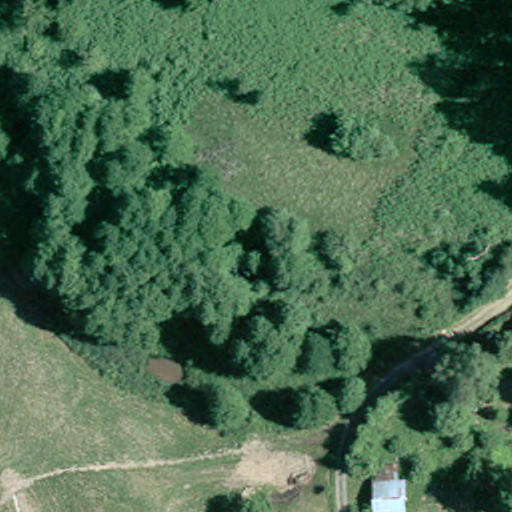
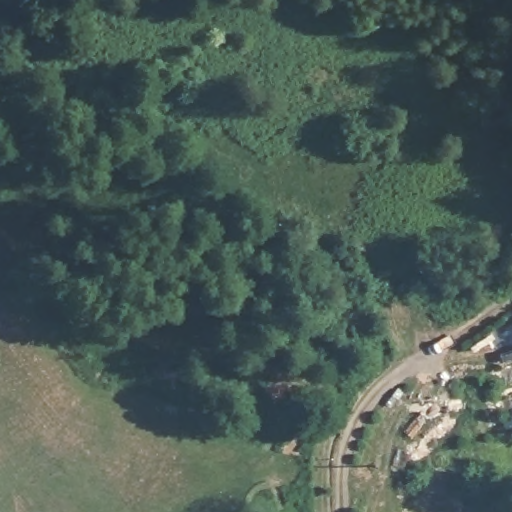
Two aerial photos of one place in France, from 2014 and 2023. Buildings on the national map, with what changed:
unchanged [(407,460),(409,511),(384,512),(373,512),(373,461),(407,460)]

